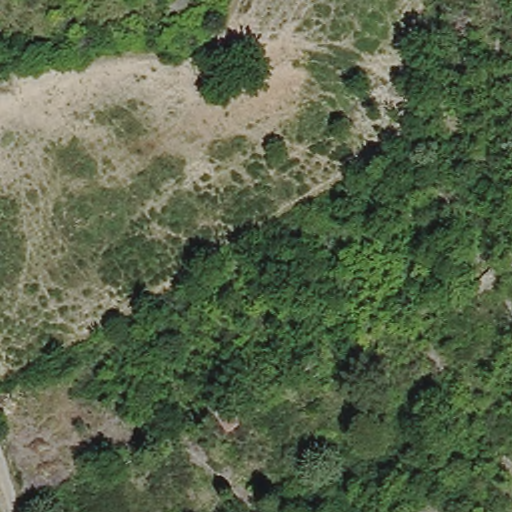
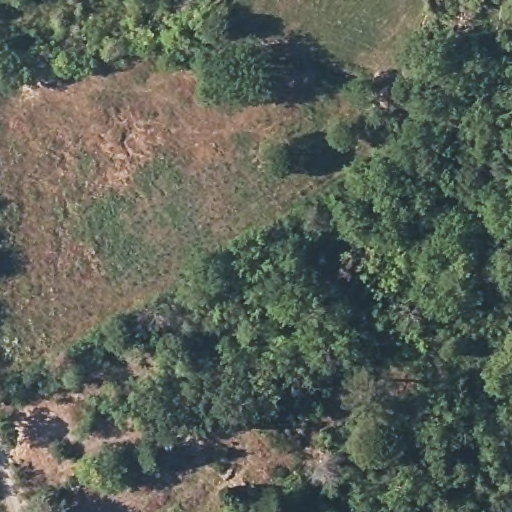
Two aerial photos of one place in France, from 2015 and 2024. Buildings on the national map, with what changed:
unchanged [(224,41),(233,55),(216,66),(206,52),(224,41)]
unchanged [(216,473),(182,448),(198,432),(233,461),(216,473)]

